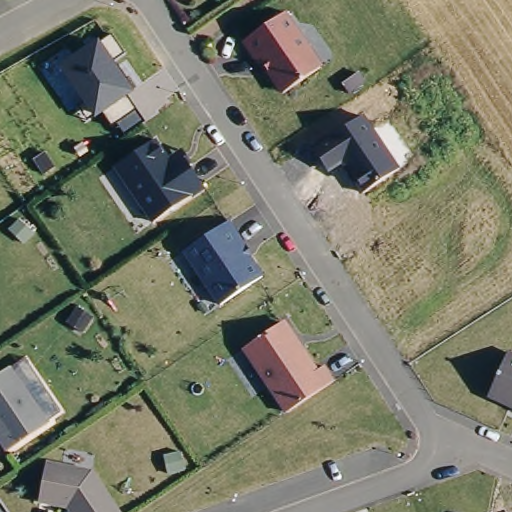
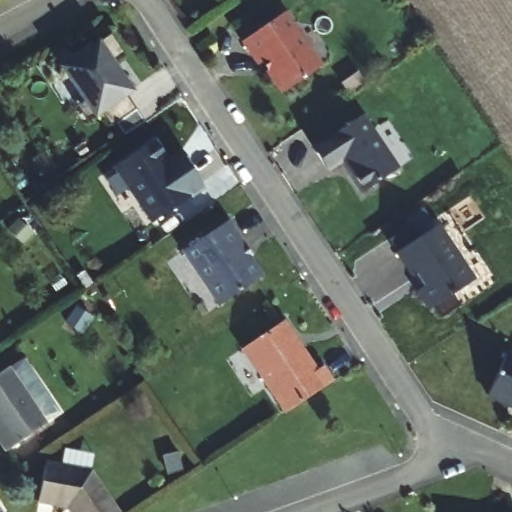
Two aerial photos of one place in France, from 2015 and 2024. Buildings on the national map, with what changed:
unchanged [(286,23),(308,56),(306,58),(320,79),(283,104),(262,73),(261,74),(260,74),(259,74),(258,74),(257,74),(257,73),(256,72),(243,52),(286,23)]
unchanged [(145,115),(124,131),(116,117),(110,121),(101,106),(88,115),(61,75),(102,51),(145,115)]
unchanged [(362,188),(341,157),(327,166),(314,143),(333,131),(331,128),(366,107),(400,162),(362,188)]
unchanged [(151,137),(172,168),(183,160),(201,186),(150,221),(112,164),(151,137)]
unchanged [(227,222),(244,247),(240,249),(260,278),(220,307),(182,252),(227,222)]
new [(473,279),(427,312),(413,292),(422,286),(415,276),(410,278),(393,253),(440,224),(473,279)]
unchanged [(242,351),(280,325),(281,326),(287,327),(293,337),(293,342),(314,373),(322,367),(332,382),(286,414),(242,351)]
unchanged [(512,406),(486,395),(505,353),(512,356),(512,406)]
unchanged [(49,424),(8,452),(0,440),(0,437),(3,435),(0,429),(0,373),(10,367),(49,424)]
unchanged [(40,504),(47,467),(51,465),(93,473),(120,512),(74,512),(72,510),(40,504)]

